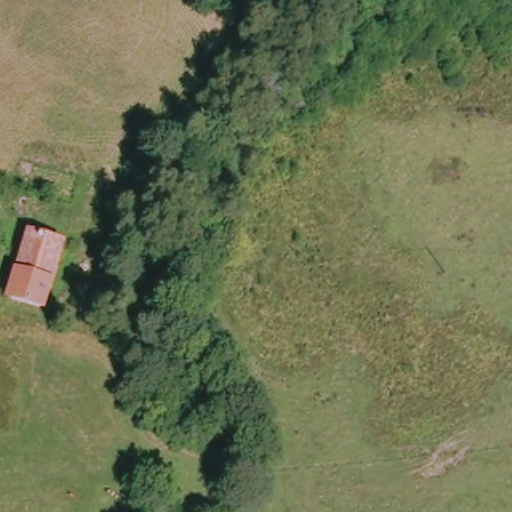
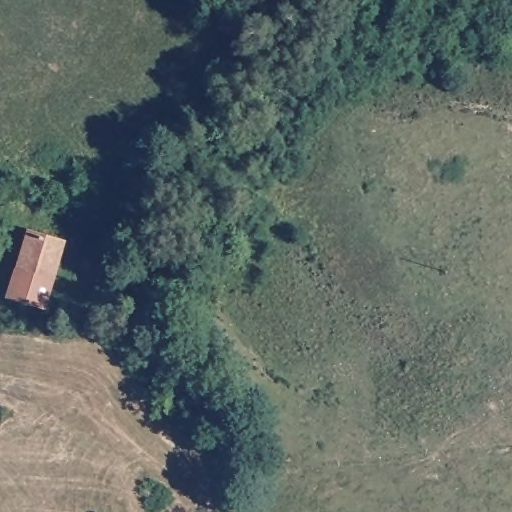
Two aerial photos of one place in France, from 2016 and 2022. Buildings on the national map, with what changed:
unchanged [(29,230),(62,240),(42,303),(10,296),(6,295),(29,230)]

